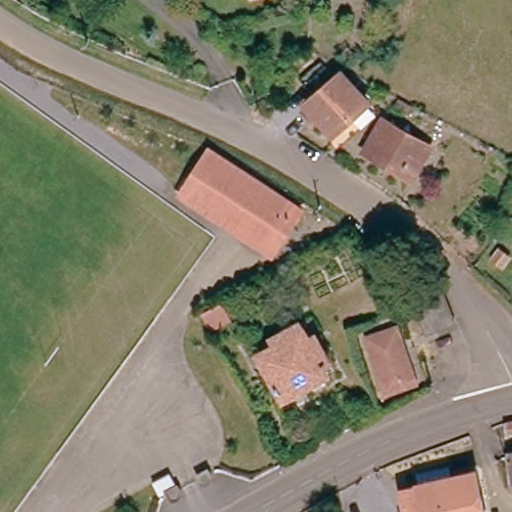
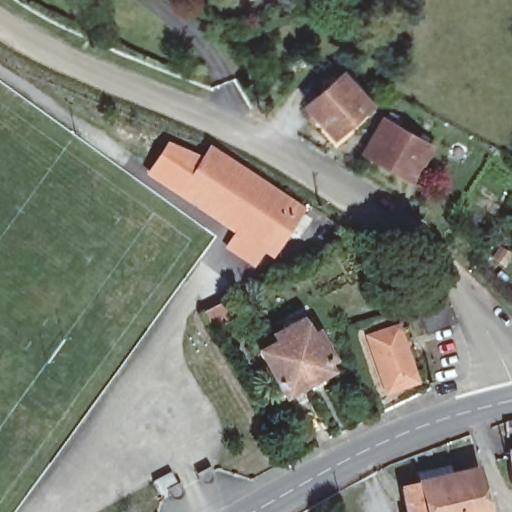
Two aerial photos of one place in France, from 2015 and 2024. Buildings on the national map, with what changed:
unchanged [(334,132),(318,116),(314,120),(305,111),(310,106),(307,104),(326,88),(342,75),(367,102),(334,132)]
demolished [(282,117),(275,113),(278,107),(286,111),(282,117)]
unchanged [(412,179),(365,151),(383,119),(431,146),(412,179)]
new [(181,194),(148,173),(165,144),(204,159),(181,194)]
unchanged [(181,194),(209,150),(295,206),(302,211),(292,225),(273,255),(247,238),(199,206),(181,194)]
unchanged [(455,322),(426,334),(415,305),(443,293),(455,322)]
unchanged [(210,326),(204,315),(224,304),(230,316),(231,319),(211,330),(210,326)]
unchanged [(323,365),(327,372),(285,396),(262,354),(280,343),(276,338),(300,325),(308,320),(318,336),(316,337),(329,361),(323,365)]
unchanged [(402,385),(384,392),(363,337),(392,326),(410,372),(413,381),(402,385)]
unchanged [(506,432),(505,422),(512,420),(512,431),(506,432)]
unchanged [(511,484),(508,452),(512,452),(512,484),(511,484)]
unchanged [(419,484),(417,472),(451,465),(452,476),(476,471),(485,512),(406,512),(402,488),(419,484)]
unchanged [(165,490),(169,497),(161,501),(152,484),(172,473),(177,484),(165,490)]

